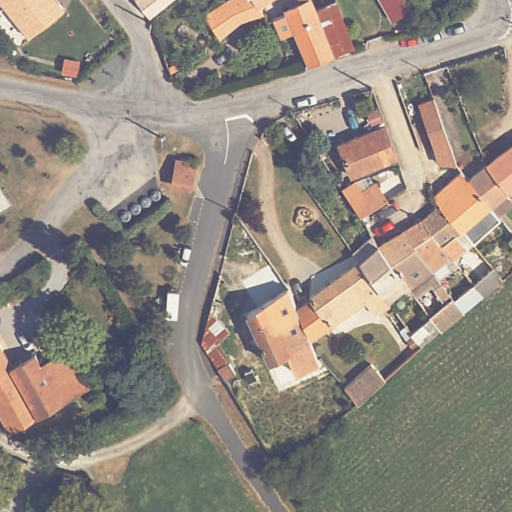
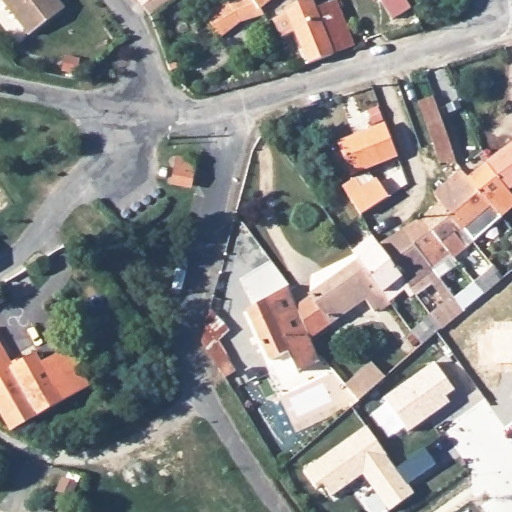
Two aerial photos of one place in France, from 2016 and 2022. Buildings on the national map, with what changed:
unchanged [(7,0),(64,0),(69,6),(34,35),(7,0)]
unchanged [(149,17),(137,0),(171,0),(149,17)]
unchanged [(263,10),(267,16),(250,24),(239,29),(216,44),(210,20),(232,6),(246,0),(274,0),(263,10)]
unchanged [(273,22),(287,16),(286,12),(301,6),(299,0),(309,0),(313,12),(332,56),(316,63),(308,66),(295,34),(280,40),(273,22)]
unchanged [(396,16),(386,0),(409,0),(413,7),(396,16)]
unchanged [(332,56),(313,12),(333,4),(353,47),(332,56)]
unchanged [(451,144),(463,165),(443,163),(422,99),(435,95),(448,137),(451,144)]
unchanged [(383,117),(387,129),(374,133),(370,121),(383,117)]
unchanged [(385,131),(397,161),(360,177),(347,147),(385,131)]
unchanged [(365,263),(383,250),(404,232),(422,219),(442,202),(436,194),(466,170),(473,179),(490,165),(512,148),(512,195),(495,208),(465,232),(463,231),(443,247),(426,262),(406,279),(400,272),(382,286),(384,287),(396,305),(386,312),(384,309),(380,312),(370,300),(317,340),(307,324),(301,312),(317,301),(316,298),(365,263)]
unchanged [(174,182),(176,165),(178,158),(198,161),(197,169),(194,186),(174,182)]
unchanged [(346,195),(343,191),(356,182),(362,190),(375,182),(387,199),(382,202),(361,219),(346,195)]
unchanged [(412,329),(490,263),(503,279),(423,345),(412,329)]
unchanged [(291,362),(286,352),(269,361),(244,315),(288,290),(294,300),(301,312),(307,324),(317,340),(320,346),(291,362)]
unchanged [(203,340),(206,331),(211,310),(223,332),(209,352),(203,340)]
new [(512,366),(495,367),(493,333),(512,333),(512,366)]
unchanged [(8,431),(0,416),(0,349),(10,368),(35,355),(40,365),(60,404),(8,431)]
unchanged [(60,404),(40,365),(68,351),(87,390),(60,404)]
unchanged [(222,378),(221,377),(216,367),(217,367),(230,360),(235,371),(222,378)]
new [(435,362),(455,391),(446,397),(450,403),(405,435),(383,400),(435,362)]
unchanged [(387,380),(360,402),(350,384),(375,363),(387,380)]
new [(416,495),(393,512),(389,512),(363,476),(331,499),(322,487),(315,492),(302,473),(366,426),(416,495)]

